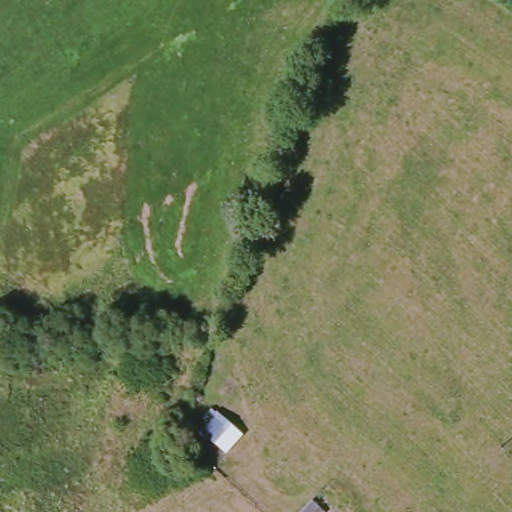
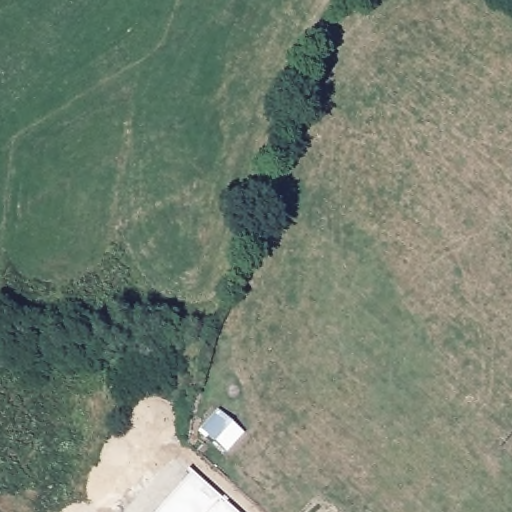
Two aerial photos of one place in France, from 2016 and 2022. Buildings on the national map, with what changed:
unchanged [(187,435),(204,420),(216,431),(227,442),(221,447),(209,459),(187,435)]
new [(239,512),(156,512),(193,471),(239,512)]

